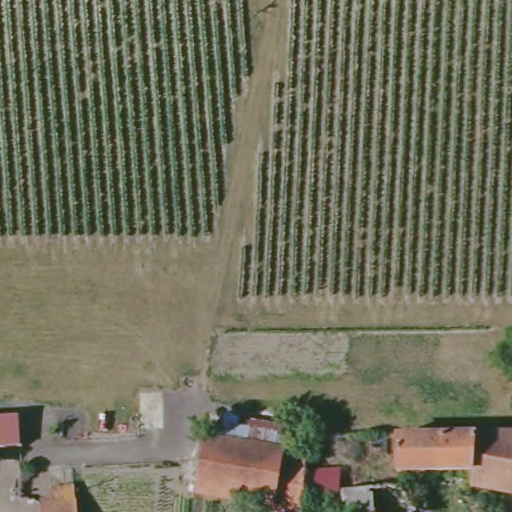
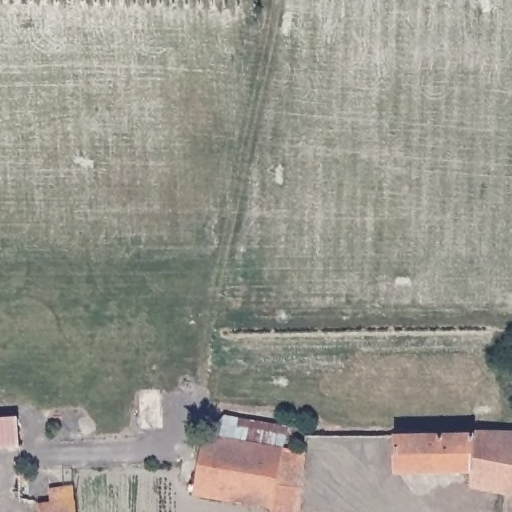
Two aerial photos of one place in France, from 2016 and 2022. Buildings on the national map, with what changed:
unchanged [(21,449),(0,449),(0,414),(20,414),(21,449)]
unchanged [(207,434),(225,414),(288,426),(285,447),(207,434)]
unchanged [(511,433),(512,433),(512,494),(505,492),(470,485),(471,471),(475,434),(511,433)]
unchanged [(338,491),(302,493),(301,501),(301,512),(270,512),(271,507),(195,494),(201,462),(207,434),(285,447),(306,451),(305,471),(339,469),(338,491)]
unchanged [(475,434),(471,471),(397,472),(397,436),(475,434)]
unchanged [(72,482),(74,495),(76,494),(78,512),(41,512),(40,499),(51,498),(50,485),(72,482)]
unchanged [(342,511),(343,489),(377,487),(386,485),(400,485),(416,511),(414,512),(361,512),(342,511)]

